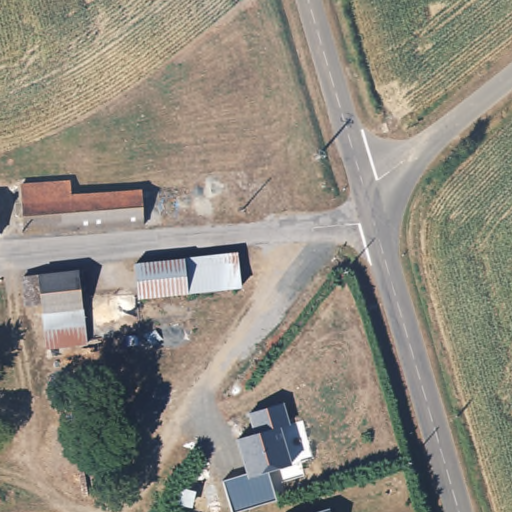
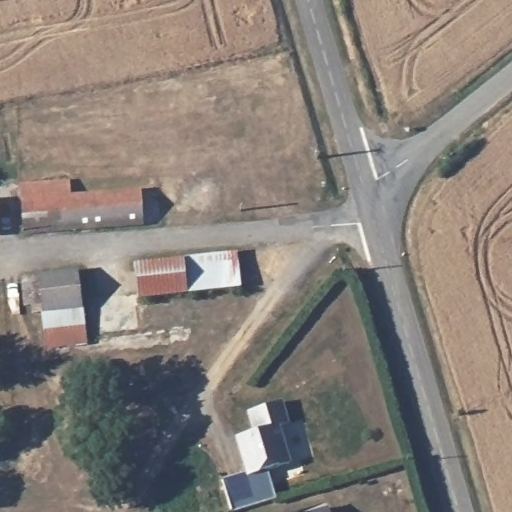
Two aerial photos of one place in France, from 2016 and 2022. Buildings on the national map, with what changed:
unchanged [(66,197),(140,191),(142,220),(24,230),(20,186),(65,182),(66,197)]
unchanged [(238,254),(240,286),(138,298),(135,264),(238,254)]
unchanged [(79,266),(85,300),(45,308),(42,294),(30,296),(26,271),(79,266)]
unchanged [(85,300),(95,350),(77,355),(63,356),(55,358),(57,345),(52,322),(46,319),(45,308),(85,300)]
unchanged [(233,512),(224,481),(247,473),(238,440),(254,435),(248,416),(283,404),(288,423),(278,428),(290,465),(266,472),(276,501),(241,512),(233,512)]
unchanged [(327,512),(323,512),(326,511),(327,512)]

